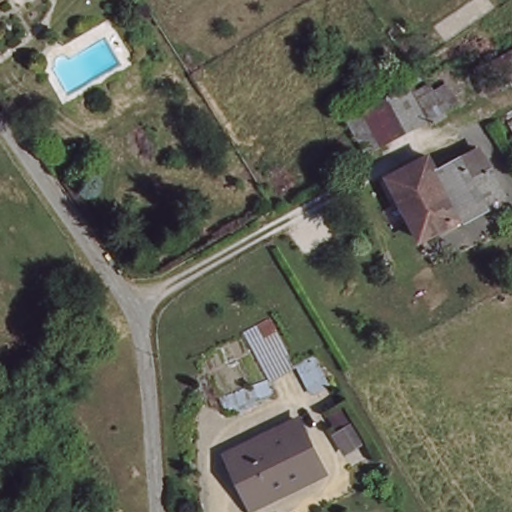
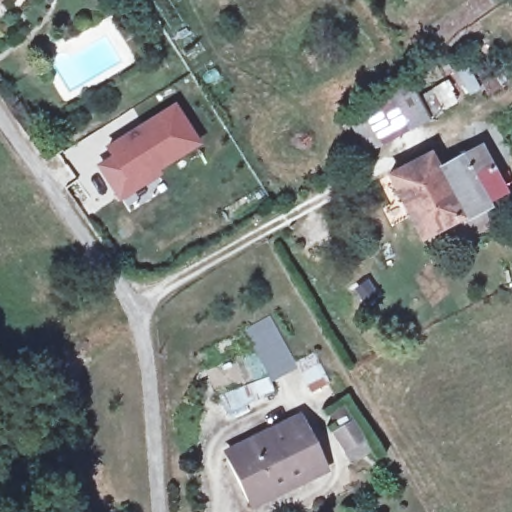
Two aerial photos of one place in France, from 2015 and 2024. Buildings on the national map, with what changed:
unchanged [(5,0),(0,4),(0,0),(5,0)]
demolished [(512,45),(512,79),(497,53),(512,45)]
unchanged [(367,155),(346,117),(405,85),(427,124),(367,155)]
new [(152,169),(155,174),(120,197),(101,166),(115,158),(109,148),(173,108),(195,144),(152,169)]
unchanged [(419,158),(426,171),(469,151),(493,196),(471,207),(473,210),(453,220),(426,233),(431,242),(415,250),(377,180),(419,158)]
unchanged [(265,318),(295,364),(269,380),(240,334),(265,318)]
unchanged [(277,499),(252,511),(226,458),(297,425),(319,468),(323,476),(277,499)]

